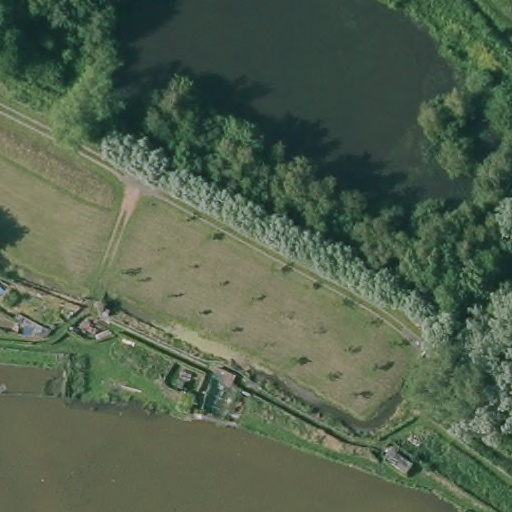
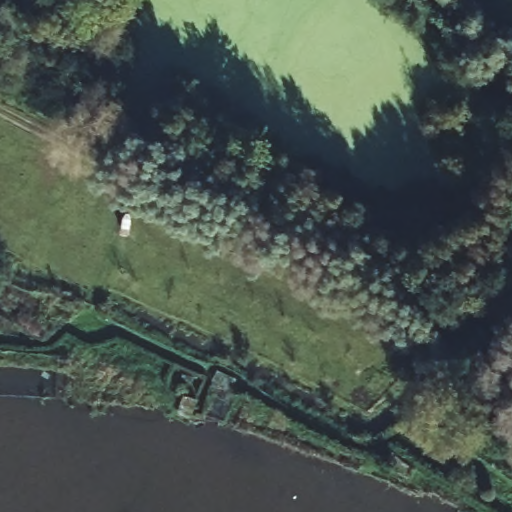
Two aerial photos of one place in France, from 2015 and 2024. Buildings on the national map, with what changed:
unchanged [(418,466),(409,480),(383,464),(393,450),(418,466)]

